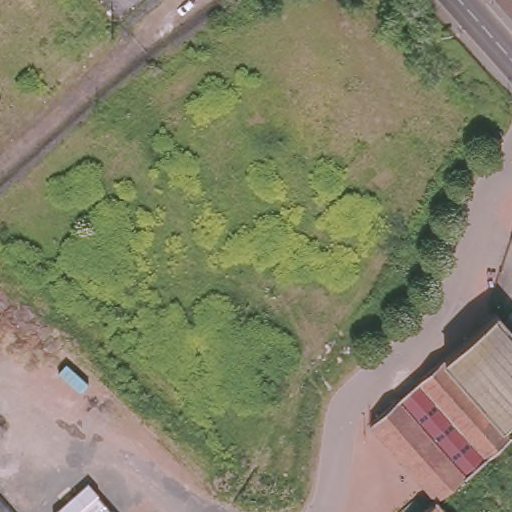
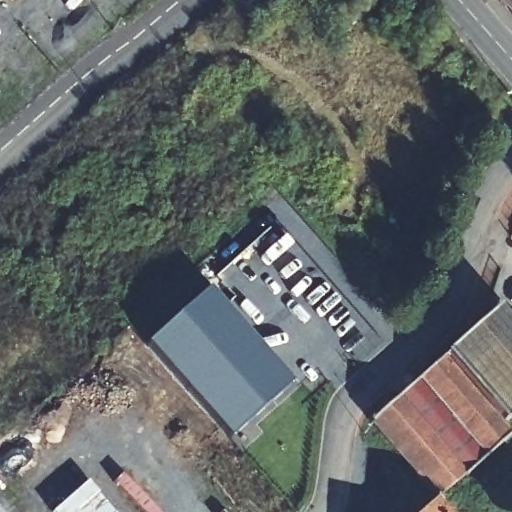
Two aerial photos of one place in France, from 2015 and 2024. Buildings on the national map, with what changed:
unchanged [(496,0),(512,0),(512,18),(496,0)]
new [(298,380),(234,438),(153,340),(211,289),(298,380)]
unchanged [(445,361),(502,310),(512,323),(512,426),(506,432),(445,361)]
unchanged [(510,436),(508,438),(435,501),(424,488),(370,426),(445,361),(506,432),(510,436)]
unchanged [(88,475),(121,512),(60,512),(54,506),(88,475)]
unchanged [(0,491),(18,512),(0,512),(0,491)]
unchanged [(435,501),(444,512),(422,512),(435,501)]

